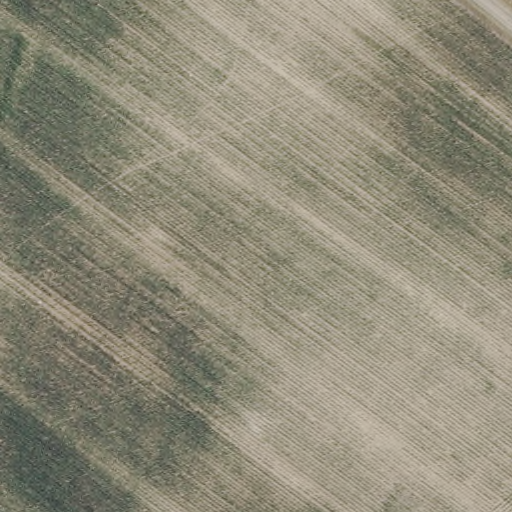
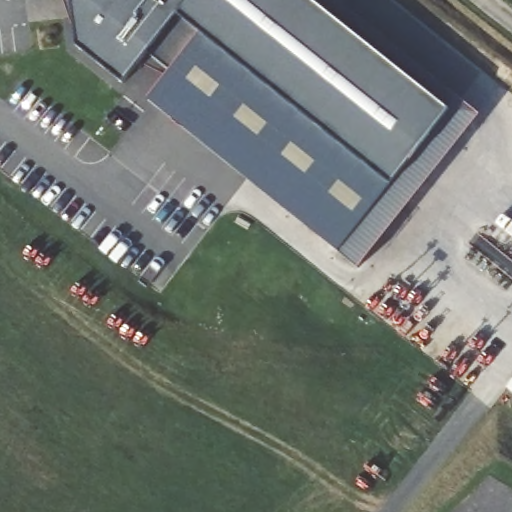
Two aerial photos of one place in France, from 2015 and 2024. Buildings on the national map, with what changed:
new [(474,111),(363,261),(67,34),(59,0),(326,0),(474,111)]

